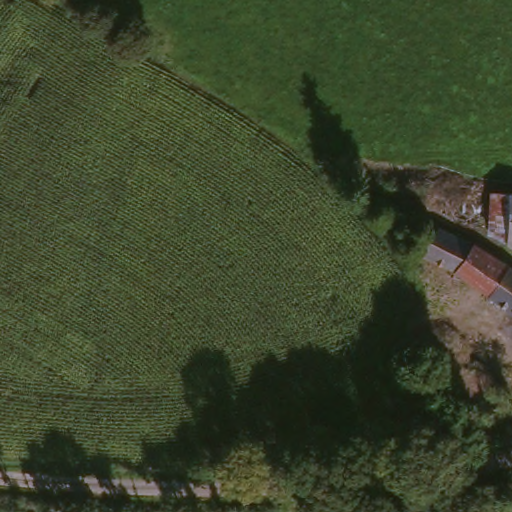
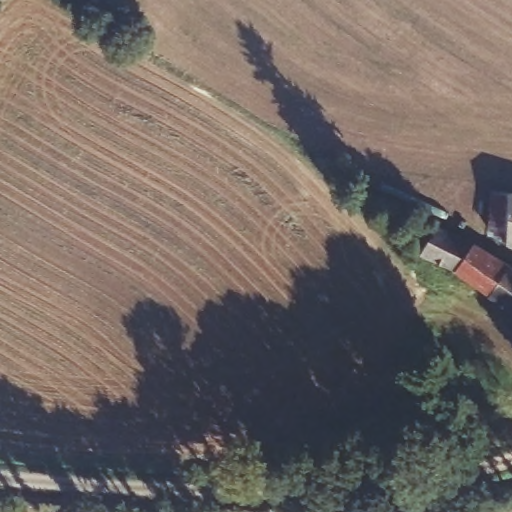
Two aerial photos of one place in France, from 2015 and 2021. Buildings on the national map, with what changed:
unchanged [(497,192),(512,193),(512,244),(492,233),(497,192)]
unchanged [(512,261),(512,309),(457,270),(425,255),(436,219),(478,238),(512,261)]

